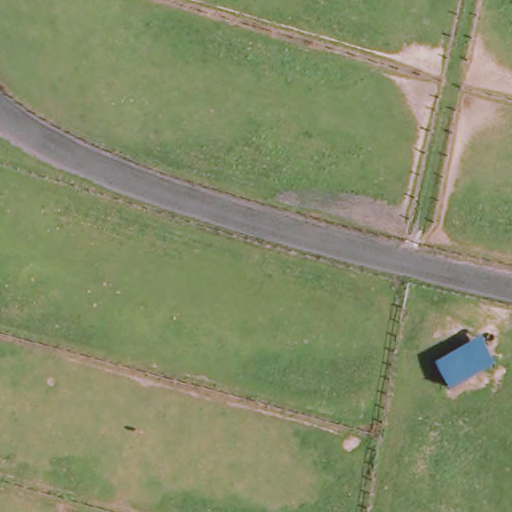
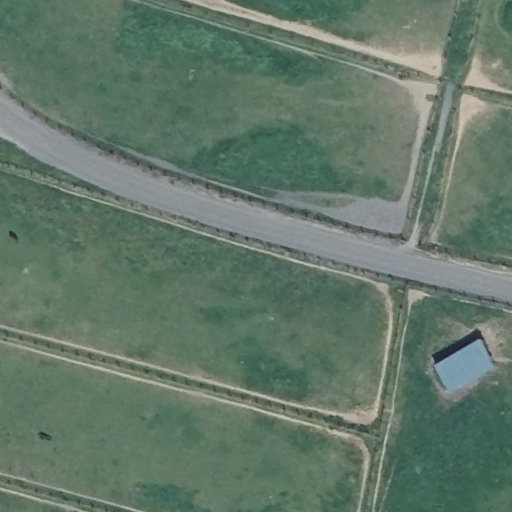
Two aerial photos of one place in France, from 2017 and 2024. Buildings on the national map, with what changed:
unchanged [(482,337),(496,367),(450,392),(437,364),(482,337)]

